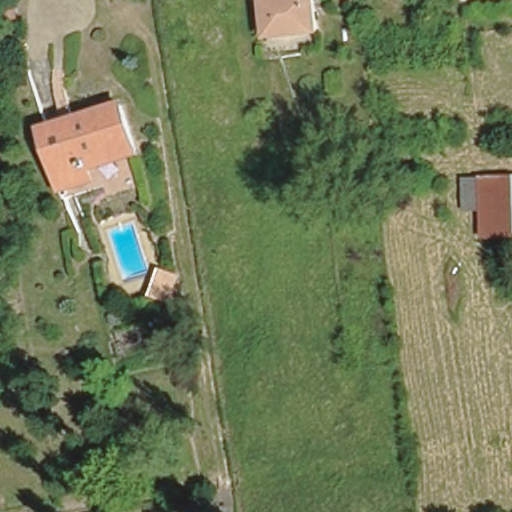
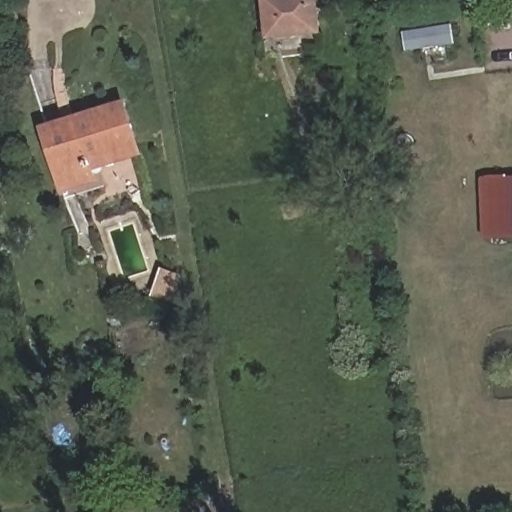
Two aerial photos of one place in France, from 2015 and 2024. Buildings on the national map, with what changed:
unchanged [(268,33),(264,0),(314,0),(317,26),(268,33)]
unchanged [(43,119),(119,96),(132,138),(87,151),(96,181),(66,190),(43,119)]
unchanged [(512,234),(467,237),(467,209),(460,208),(463,174),(512,171),(512,234)]

